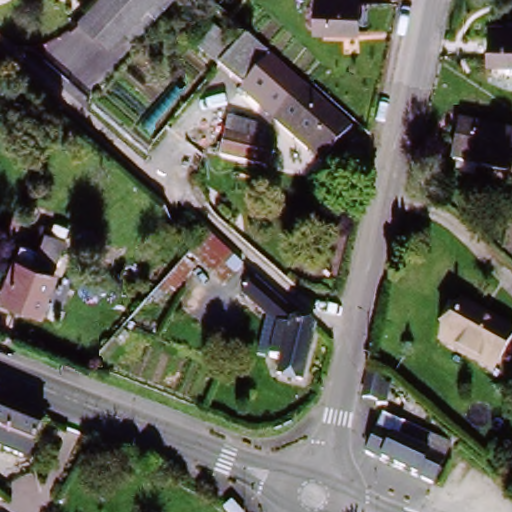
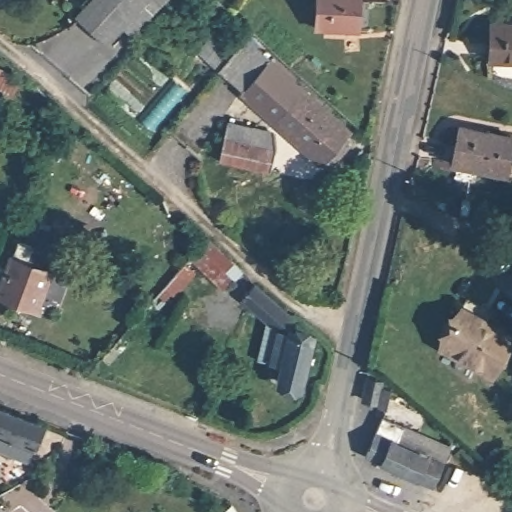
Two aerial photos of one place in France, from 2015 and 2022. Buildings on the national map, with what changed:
unchanged [(154,9),(145,1),(108,45),(76,18),(91,0),(161,0),(154,9)]
unchanged [(311,26),(315,0),(363,0),(359,32),(311,26)]
unchanged [(512,20),(512,59),(486,55),(491,17),(512,20)]
unchanged [(271,86),(254,106),(203,64),(194,55),(211,37),(220,45),(230,34),(258,57),(280,75),(271,86)]
unchanged [(22,63),(17,79),(0,74),(0,57),(22,63)]
unchanged [(272,109),(271,100),(276,92),(290,89),(333,126),(326,134),(337,145),(332,153),(323,157),(313,155),(267,115),(272,109)]
unchanged [(462,121),(512,136),(512,160),(508,173),(450,155),(462,121)]
unchanged [(226,126),(261,133),(271,146),(267,168),(218,160),(226,126)]
unchanged [(40,318),(0,301),(0,278),(11,252),(18,235),(45,246),(53,227),(42,223),(47,212),(65,219),(60,231),(71,235),(57,271),(59,272),(40,318)]
unchanged [(250,270),(239,284),(203,251),(213,242),(216,239),(250,270)]
unchanged [(180,296),(169,283),(178,275),(182,271),(194,283),(180,296)]
unchanged [(281,361),(266,342),(269,321),(256,303),(268,286),(300,314),(296,336),(309,342),(300,394),(276,388),(281,361)]
unchanged [(436,343),(457,307),(484,322),(486,319),(512,334),(512,335),(490,373),(436,343)]
unchanged [(371,374),(395,380),(389,408),(364,401),(371,374)]
unchanged [(43,422),(35,441),(0,427),(0,405),(43,422)]
unchanged [(378,412),(442,443),(422,481),(359,451),(378,412)]
unchanged [(35,441),(28,460),(0,449),(0,427),(35,441)]

